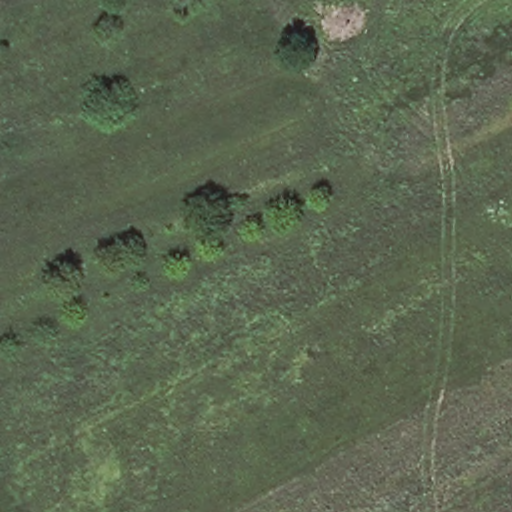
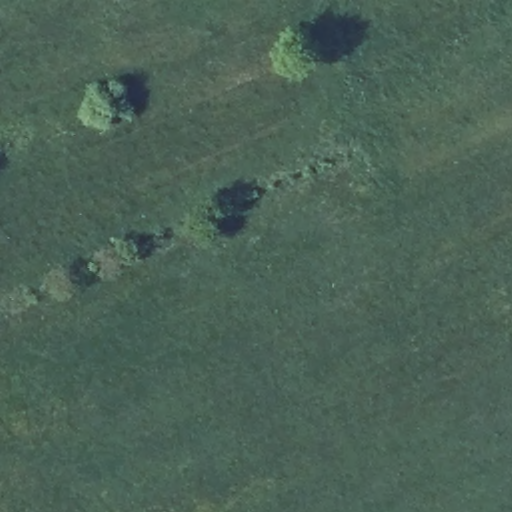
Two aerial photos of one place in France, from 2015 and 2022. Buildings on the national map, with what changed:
[]

